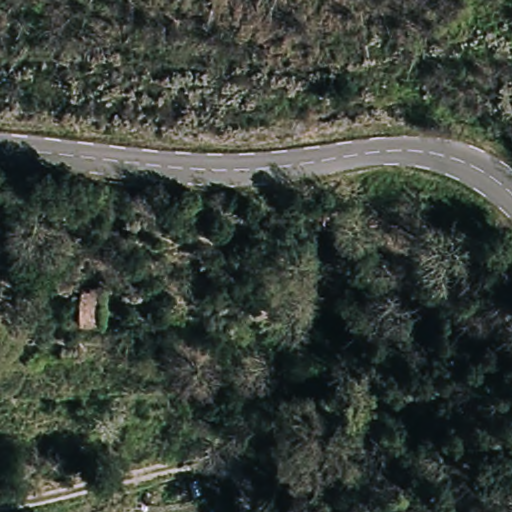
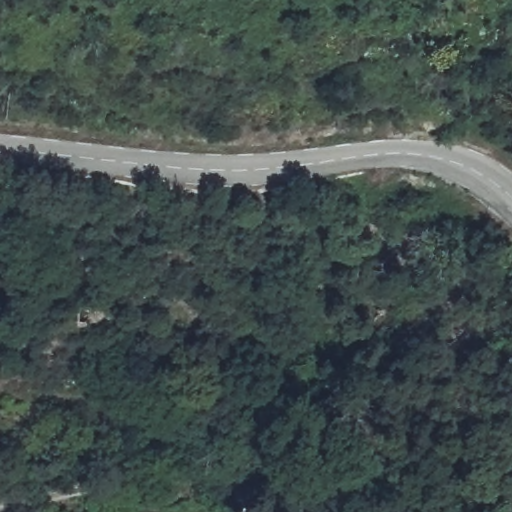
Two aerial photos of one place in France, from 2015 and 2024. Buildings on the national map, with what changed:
unchanged [(80,325),(78,284),(101,282),(104,323),(80,325)]

